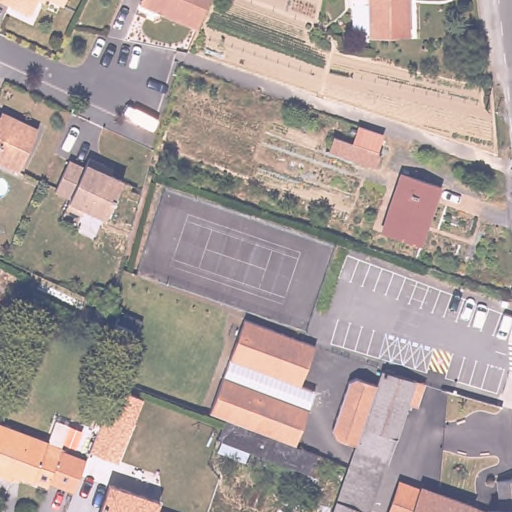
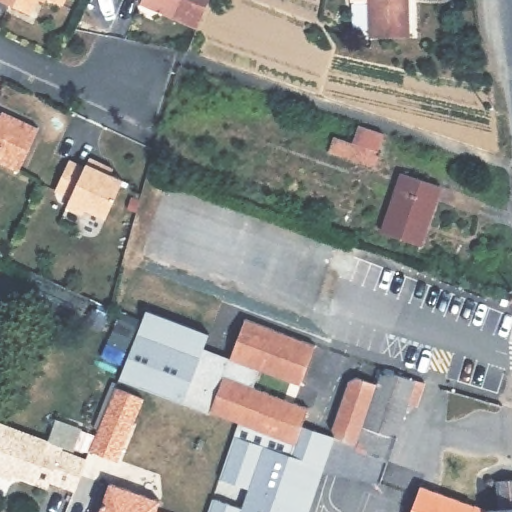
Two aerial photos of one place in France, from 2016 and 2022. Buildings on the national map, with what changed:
unchanged [(27,17),(0,3),(0,0),(35,0),(27,17)]
unchanged [(60,7),(42,0),(63,0),(60,7)]
unchanged [(140,0),(208,0),(206,5),(195,33),(138,5),(140,0)]
unchanged [(370,30),(370,1),(348,0),(407,0),(407,30),(370,30)]
unchanged [(10,115),(40,129),(20,171),(0,162),(0,115),(9,119),(10,115)]
unchanged [(335,131),(380,149),(376,165),(325,147),(335,131)]
unchanged [(105,164),(103,170),(123,180),(105,218),(85,208),(81,215),(66,207),(70,197),(55,190),(69,159),(85,166),(89,156),(105,164)]
unchanged [(446,182),(427,242),(385,229),(403,169),(446,182)]
new [(119,380),(145,311),(208,335),(203,348),(232,360),(230,364),(256,373),(250,391),(224,381),(212,415),(119,380)]
unchanged [(245,323),(310,347),(295,387),(230,364),(245,323)]
unchanged [(384,464),(351,455),(353,447),(365,415),(375,387),(379,373),(415,383),(424,385),(417,405),(408,401),(386,465),(384,464)]
unchanged [(333,440),(330,433),(346,384),(354,380),(375,387),(365,415),(353,447),(333,440)]
unchanged [(290,446),(211,418),(224,381),(303,410),(290,446)]
unchanged [(91,452),(116,388),(144,400),(118,462),(91,452)]
demolished [(450,405),(512,425),(512,461),(509,471),(480,462),(482,452),(438,438),(450,405)]
unchanged [(14,466),(12,472),(0,468),(0,417),(87,452),(74,485),(50,475),(47,478),(14,466)]
new [(206,512),(211,497),(240,507),(246,490),(217,480),(235,426),(290,446),(298,425),(331,436),(333,440),(353,447),(351,455),(384,464),(386,465),(380,485),(322,475),(309,512),(206,512)]
demolished [(233,445),(220,441),(225,425),(239,430),(317,458),(312,473),(233,445)]
unchanged [(487,505),(500,503),(497,476),(512,474),(512,512),(409,512),(422,481),(487,505)]
unchanged [(158,504),(155,512),(100,512),(110,486),(158,504)]
demolished [(368,512),(332,512),(336,501),(368,511),(368,512)]

